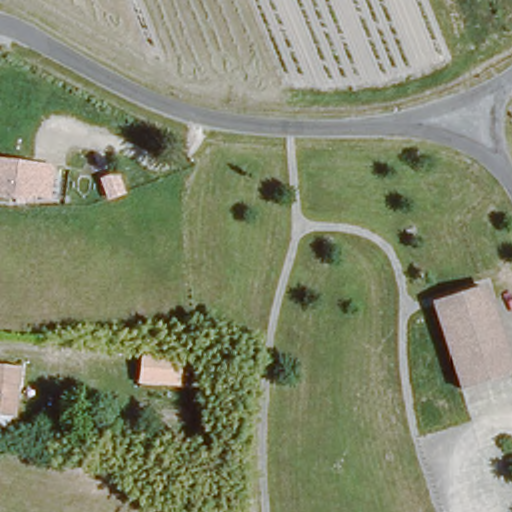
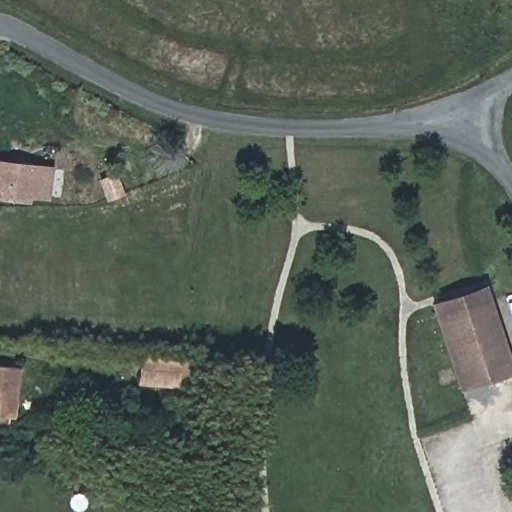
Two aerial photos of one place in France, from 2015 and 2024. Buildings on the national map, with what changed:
unchanged [(49,200),(30,198),(30,203),(0,198),(0,160),(52,166),(49,200)]
unchanged [(512,372),(457,391),(428,306),(482,287),(512,371),(512,372)]
unchanged [(137,383),(140,354),(182,357),(179,387),(137,383)]
unchanged [(20,364),(12,414),(0,412),(0,361),(20,364)]

